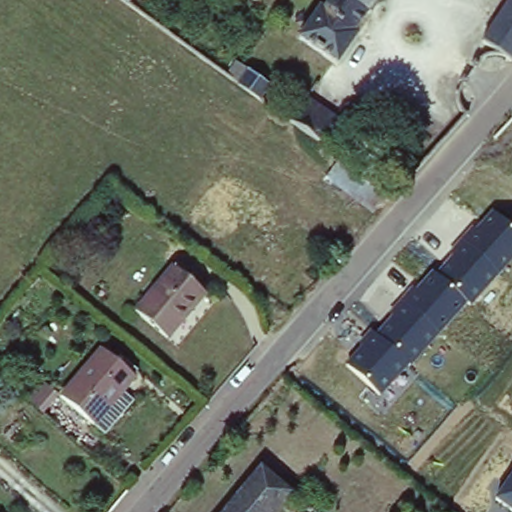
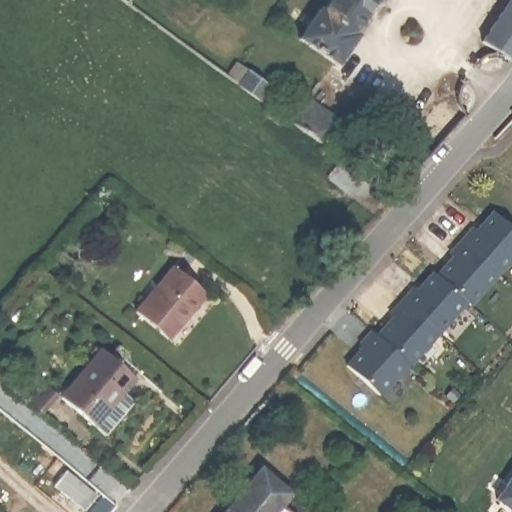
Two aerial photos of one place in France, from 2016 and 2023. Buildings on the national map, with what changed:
unchanged [(378,5),(371,15),(369,14),(354,36),(358,38),(337,68),(297,40),(318,11),(323,14),(332,0),(379,0),(377,4),(378,5)]
unchanged [(512,66),(483,47),(512,3),(512,65),(512,66)]
unchanged [(248,63),(270,79),(260,95),(237,79),(248,63)]
unchanged [(303,91),(336,115),(319,137),(287,114),(303,91)]
unchanged [(471,307),(467,303),(413,366),(409,363),(381,395),(347,366),(372,335),(376,337),(432,274),(437,277),(491,212),(512,231),(512,263),(471,307)]
unchanged [(208,293),(170,340),(138,313),(174,267),(208,293)]
unchanged [(129,372),(88,421),(58,396),(97,347),(129,372)]
unchanged [(262,467),(316,512),(225,512),(262,467)]
unchanged [(495,497),(512,470),(512,509),(495,497)]

